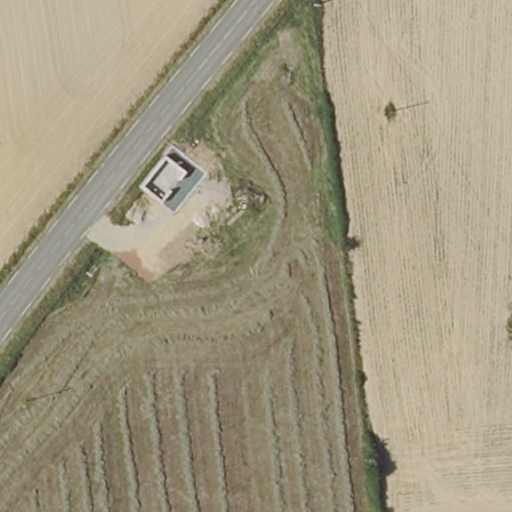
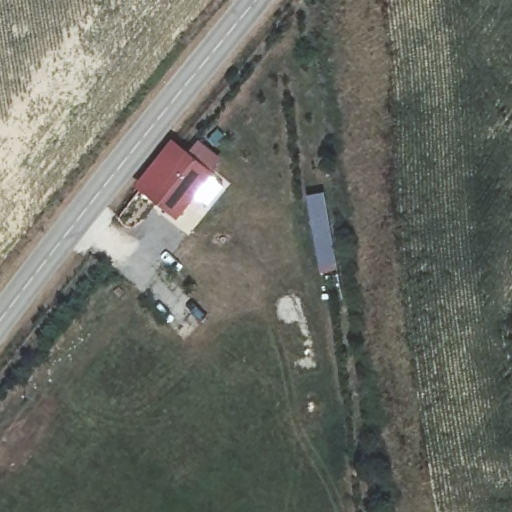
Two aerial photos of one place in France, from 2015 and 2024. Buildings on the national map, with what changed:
new [(173,140),(188,152),(198,139),(220,157),(210,170),(215,174),(176,220),(134,186),(173,140)]
demolished [(137,191),(160,161),(181,176),(157,207),(137,191)]

